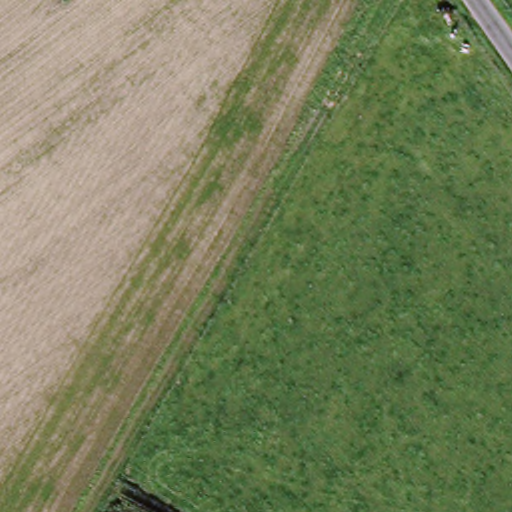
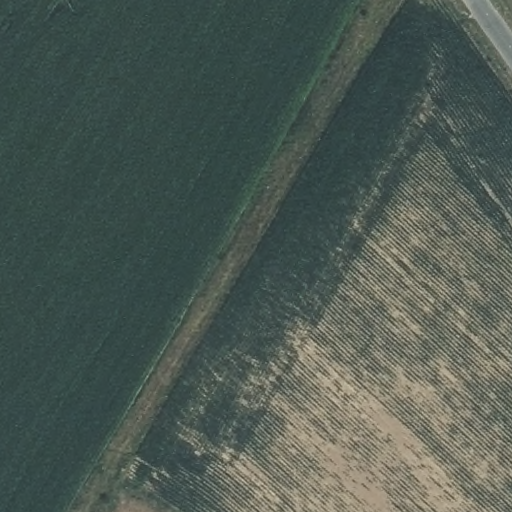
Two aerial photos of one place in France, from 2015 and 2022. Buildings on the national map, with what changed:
[]

